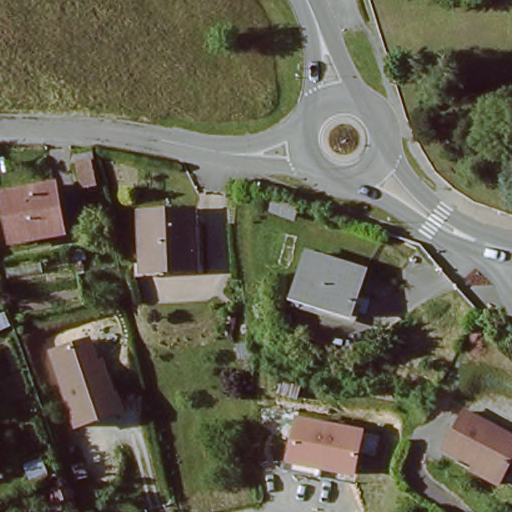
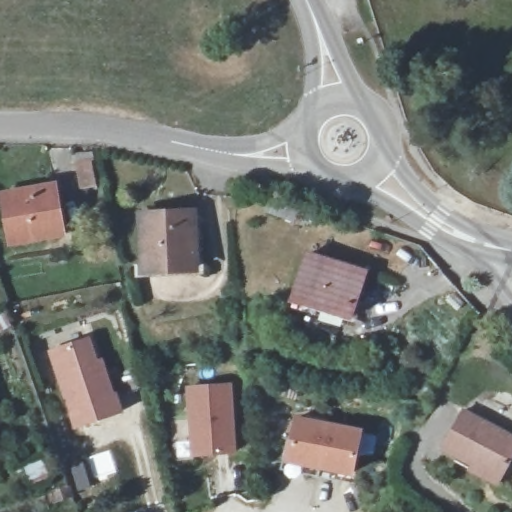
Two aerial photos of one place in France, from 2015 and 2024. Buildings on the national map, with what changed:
unchanged [(94,161),(101,188),(85,192),(78,166),(94,161)]
unchanged [(55,188),(61,239),(11,245),(5,195),(55,188)]
unchanged [(145,216),(192,214),(194,269),(154,271),(140,272),(138,216),(145,216)]
unchanged [(366,274),(352,321),(296,303),(310,256),(366,274)]
unchanged [(119,394),(124,411),(80,426),(56,353),(88,342),(96,365),(105,361),(110,377),(116,395),(119,394)]
new [(191,458),(187,387),(234,385),(238,453),(191,458)]
unchanged [(356,478),(287,464),(296,416),(363,429),(356,478)]
unchanged [(476,470),(447,454),(467,417),(512,442),(512,471),(506,483),(501,491),(473,476),(476,470)]

